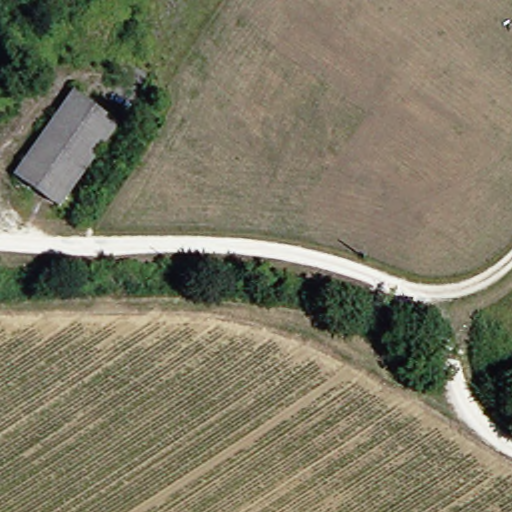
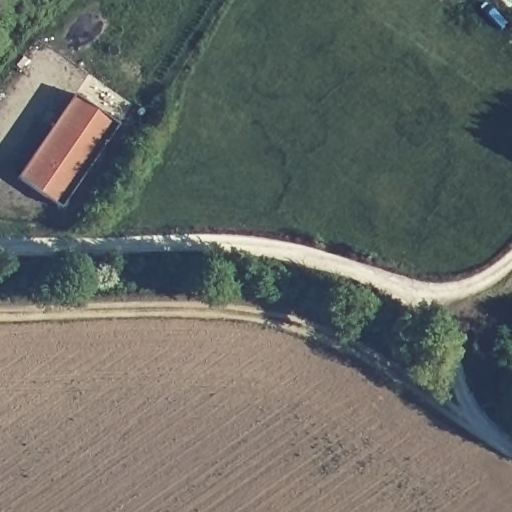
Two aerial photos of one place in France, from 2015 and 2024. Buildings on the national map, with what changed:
unchanged [(63,205),(21,178),(79,96),(120,122),(63,205)]

